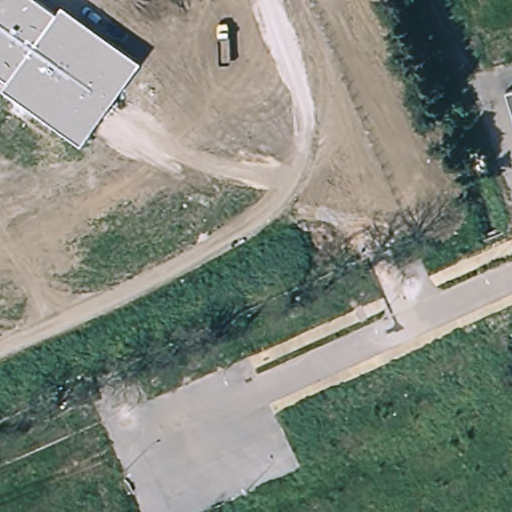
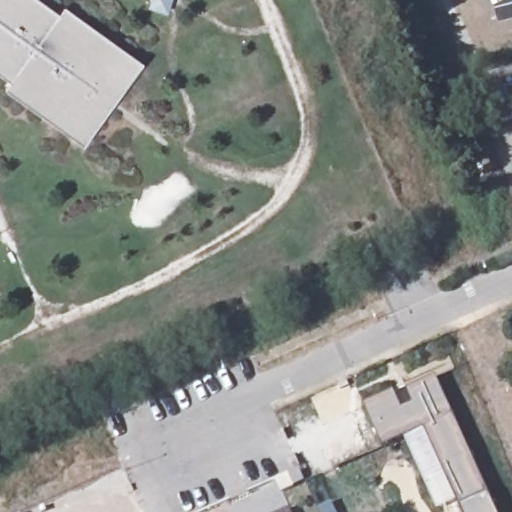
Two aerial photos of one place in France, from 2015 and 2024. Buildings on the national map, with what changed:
unchanged [(57,13),(61,6),(140,61),(82,145),(4,87),(9,79),(0,74),(0,0),(38,0),(57,13)]
unchanged [(512,88),(512,111),(506,90),(512,88)]
new [(394,391),(402,409),(413,404),(406,390),(436,377),(489,494),(459,507),(423,429),(383,448),(363,405),(394,391)]
new [(489,494),(497,512),(462,512),(460,507),(489,494)]

